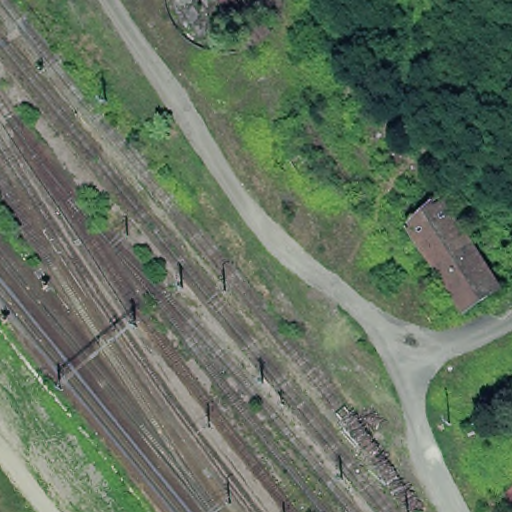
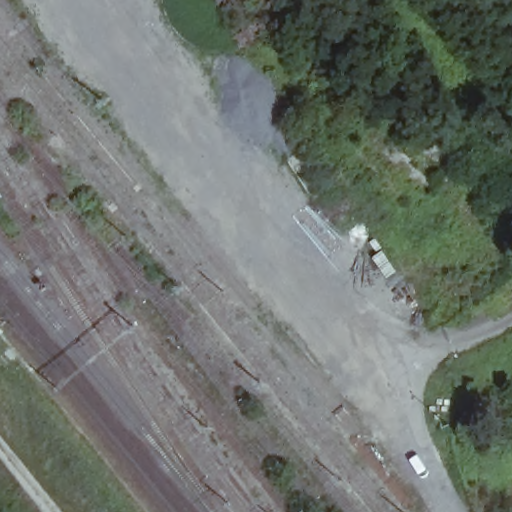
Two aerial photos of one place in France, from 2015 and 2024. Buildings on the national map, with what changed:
demolished [(502,290),(459,317),(403,230),(446,199),(502,290)]

